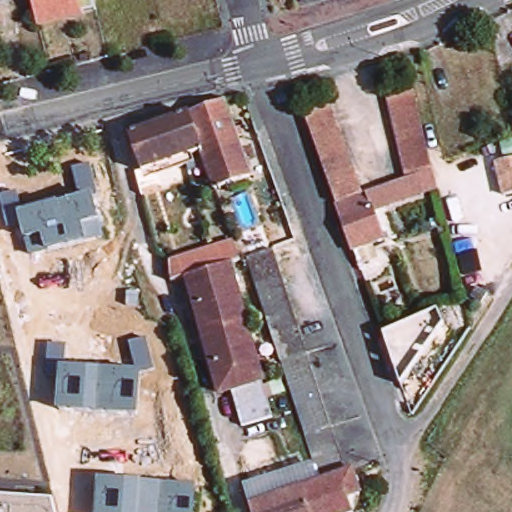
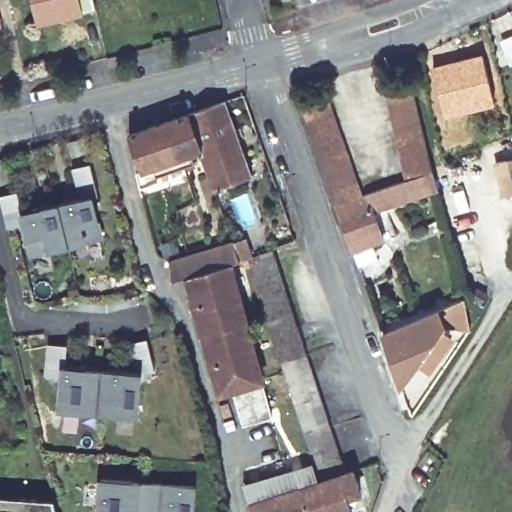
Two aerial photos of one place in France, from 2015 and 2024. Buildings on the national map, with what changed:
unchanged [(13,25),(0,28),(0,0),(7,0),(13,25)]
unchanged [(111,11),(51,25),(45,0),(108,0),(111,11)]
new [(512,62),(503,66),(497,40),(512,34),(512,62)]
new [(482,52),(496,104),(443,117),(428,66),(482,52)]
unchanged [(443,169),(418,178),(397,87),(423,81),(443,169)]
unchanged [(235,97),(262,171),(225,185),(220,172),(211,146),(198,109),(235,97)]
unchanged [(337,177),(325,142),(315,115),(313,109),(339,100),(372,194),(346,203),(337,177)]
unchanged [(211,146),(204,149),(206,155),(148,174),(146,166),(152,164),(139,129),(198,109),(211,146)]
unchanged [(497,161),(512,157),(512,193),(505,195),(497,161)]
unchanged [(19,190),(24,211),(82,196),(74,167),(92,162),(100,192),(94,194),(105,237),(29,254),(21,221),(8,225),(2,193),(19,190)]
unchanged [(367,265),(365,258),(362,251),(361,246),(346,203),(372,194),(376,192),(418,178),(443,169),(447,188),(382,210),(392,240),(372,247),(377,261),(367,265)]
new [(463,187),(471,210),(451,217),(444,193),(463,187)]
unchanged [(448,234),(442,236),(440,228),(447,227),(448,234)]
unchanged [(250,262),(238,266),(204,276),(196,278),(191,280),(178,283),(177,263),(244,244),(250,262)]
unchanged [(300,469),(302,468),(321,462),(328,481),(313,432),(292,368),(291,363),(282,336),(271,297),(266,282),(258,259),(283,251),(286,261),(291,276),(307,327),(316,355),(332,407),(354,473),(361,471),(369,495),(357,499),(361,512),(262,512),(259,501),(305,487),(300,469)]
unchanged [(204,276),(238,266),(250,307),(254,320),(212,332),(207,317),(196,278),(204,276)]
unchanged [(472,298),(477,289),(487,295),(481,305),(472,298)]
unchanged [(405,385),(405,384),(397,364),(389,342),(386,332),(442,309),(448,323),(405,385)]
unchanged [(270,376),(239,385),(229,388),(212,332),(254,320),(270,376)]
unchanged [(68,345),(67,365),(137,371),(131,342),(148,337),(157,372),(142,375),(139,416),(57,408),(60,379),(45,377),(47,343),(68,345)]
unchanged [(281,415),(250,424),(239,385),(270,376),(281,415)]
unchanged [(200,486),(198,512),(96,512),(99,477),(200,486)]
unchanged [(56,500),(59,512),(0,512),(0,496),(56,500)]

